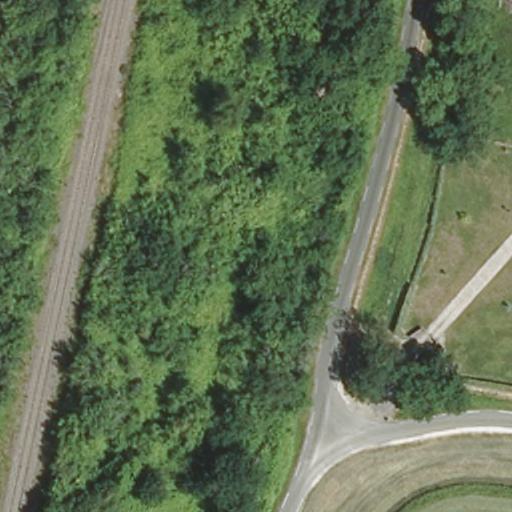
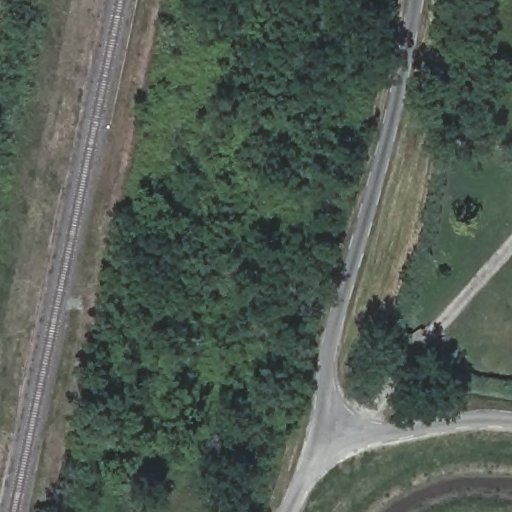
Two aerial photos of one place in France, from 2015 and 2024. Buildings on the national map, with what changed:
[]

